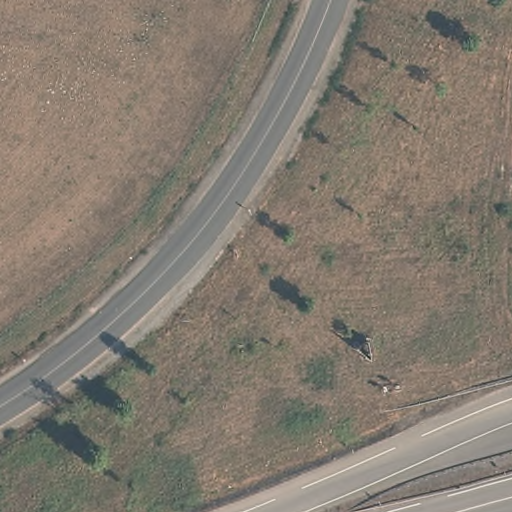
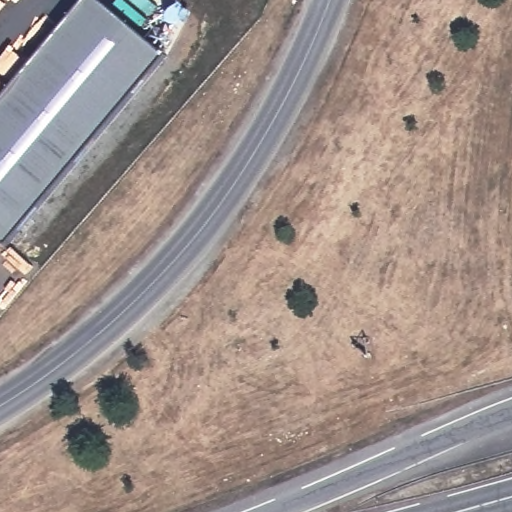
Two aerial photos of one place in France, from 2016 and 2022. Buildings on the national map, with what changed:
new [(102,0),(167,58),(9,247),(0,240),(0,102),(86,0),(102,0)]

